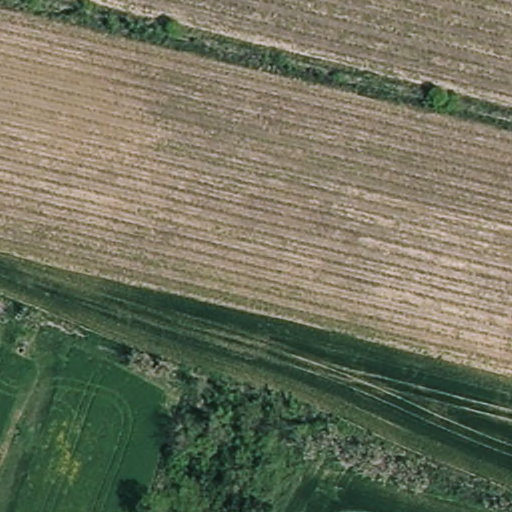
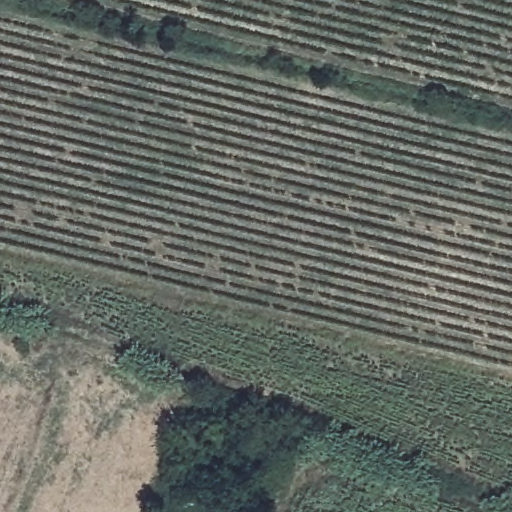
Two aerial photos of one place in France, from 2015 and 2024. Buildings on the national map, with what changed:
[]

